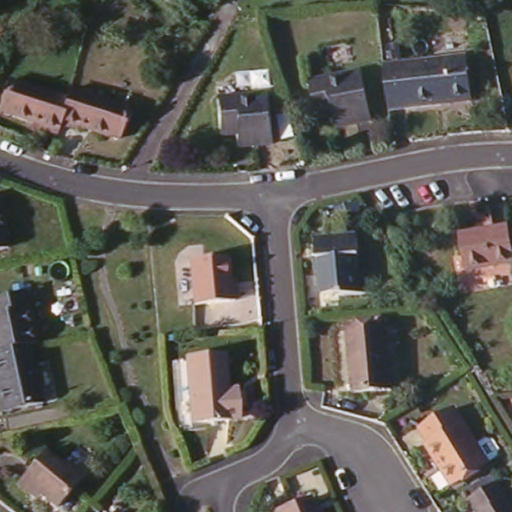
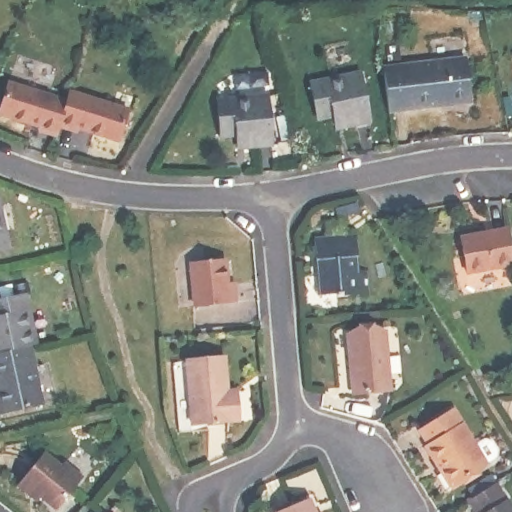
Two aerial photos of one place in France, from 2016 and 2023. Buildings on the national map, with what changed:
unchanged [(385,67),(466,57),(472,94),(442,97),(443,107),(391,115),(385,67)]
unchanged [(367,115),(341,119),(340,115),(334,117),(332,105),(317,107),(310,75),(359,66),(367,115)]
unchanged [(37,126),(38,121),(0,107),(0,95),(9,75),(63,95),(55,120),(52,132),(37,126)]
unchanged [(127,104),(117,135),(75,122),(74,126),(55,120),(63,95),(66,85),(127,104)]
unchanged [(272,137),(244,141),(244,135),(237,137),(236,128),(221,130),(216,94),(265,86),(272,137)]
unchanged [(7,245),(0,246),(0,211),(7,245)]
unchanged [(512,260),(467,268),(461,234),(508,226),(512,248),(512,260)]
unchanged [(355,253),(353,254),(355,267),(366,267),(369,290),(336,293),(336,291),(321,292),(317,258),(315,259),(313,237),(353,234),(355,253)]
unchanged [(235,301),(227,302),(193,305),(189,263),(223,260),(225,282),(233,282),(235,301)]
unchanged [(8,296),(35,290),(45,340),(41,341),(0,350),(0,298),(8,296)]
unchanged [(390,380),(354,384),(348,328),(385,323),(390,380)]
unchanged [(41,341),(53,399),(9,409),(0,368),(0,350),(41,341)]
unchanged [(234,393),(236,416),(189,422),(182,360),(220,355),(223,387),(233,386),(234,393)]
unchanged [(489,464),(455,485),(429,443),(432,441),(424,427),(455,408),(489,464)]
unchanged [(28,497),(15,486),(42,453),(61,468),(63,466),(80,478),(54,511),(40,498),(36,502),(28,497)]
unchanged [(512,496),(512,512),(482,512),(473,497),(502,478),(512,496)]
unchanged [(317,512),(278,512),(277,510),(310,496),(317,512)]

